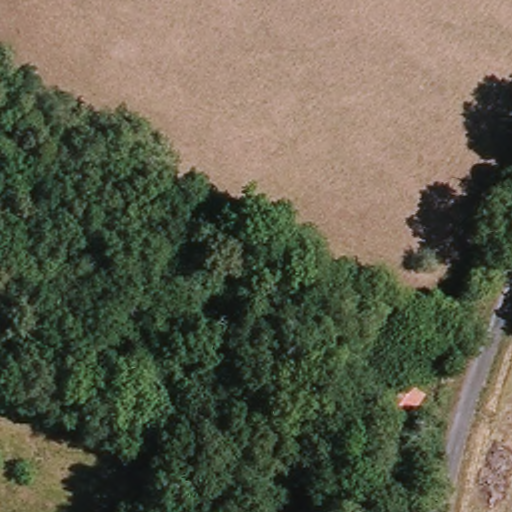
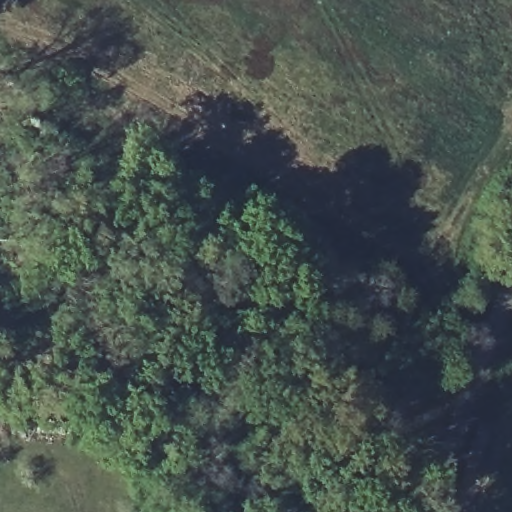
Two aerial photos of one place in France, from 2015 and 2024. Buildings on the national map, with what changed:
unchanged [(402,412),(382,403),(393,385),(413,396),(402,412)]

